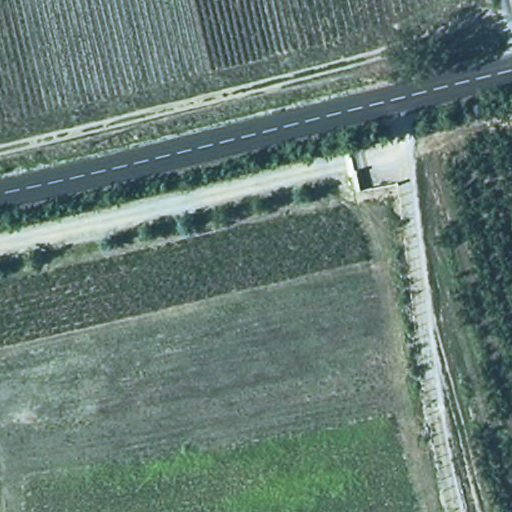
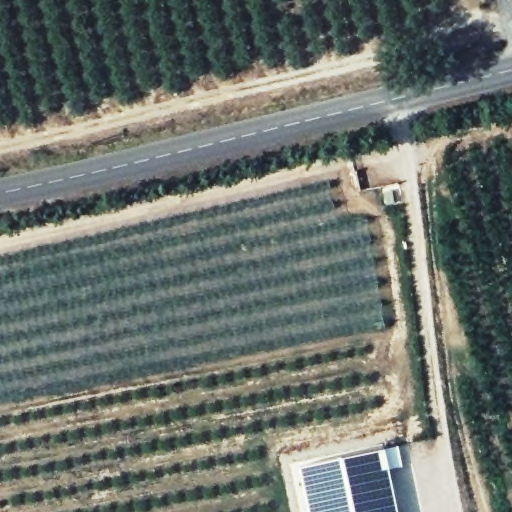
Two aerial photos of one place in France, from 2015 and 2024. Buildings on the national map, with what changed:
new [(398,512),(308,512),(299,467),(385,450),(398,512)]

